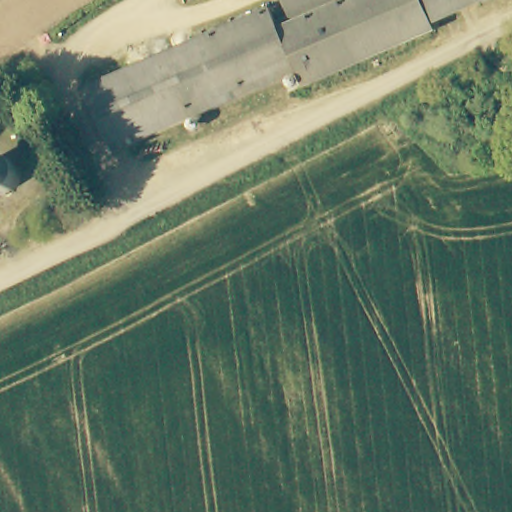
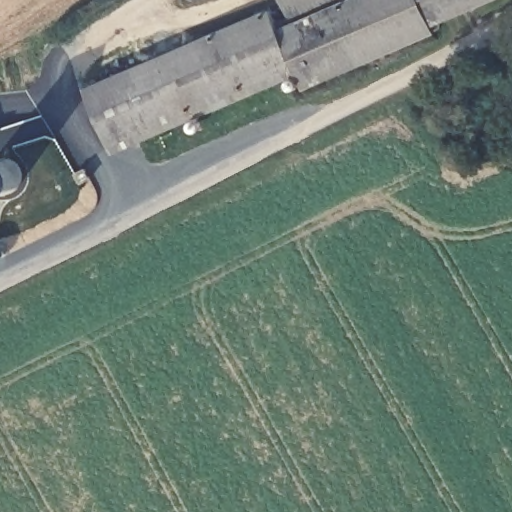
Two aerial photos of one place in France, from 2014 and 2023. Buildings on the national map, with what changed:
unchanged [(437,31),(307,85),(298,66),(111,146),(87,88),(275,9),(283,29),(352,0),(424,0),(434,22),(437,31)]
unchanged [(289,0),(326,0),(295,13),(289,0)]
unchanged [(424,0),(489,0),(434,22),(424,0)]
unchanged [(26,161),(28,170),(26,182),(21,187),(10,192),(0,190),(0,155),(9,152),(16,153),(26,161)]

